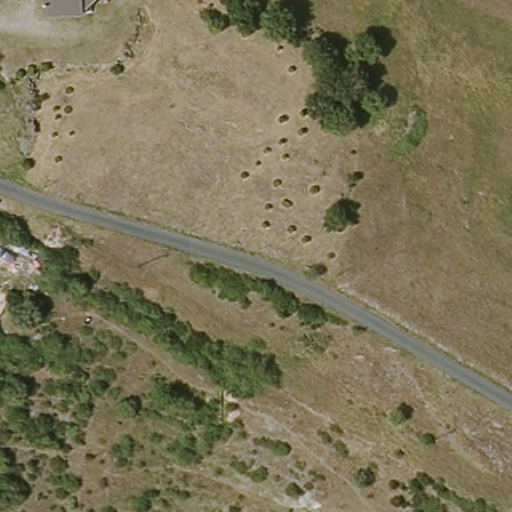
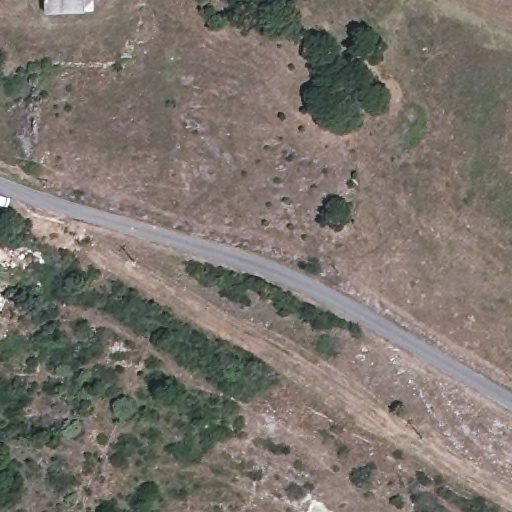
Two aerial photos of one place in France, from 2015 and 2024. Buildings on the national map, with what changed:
unchanged [(92,0),(85,5),(85,15),(43,12),(44,0),(92,0)]

